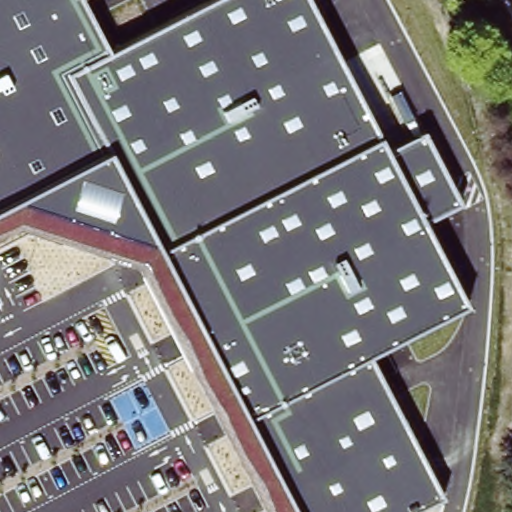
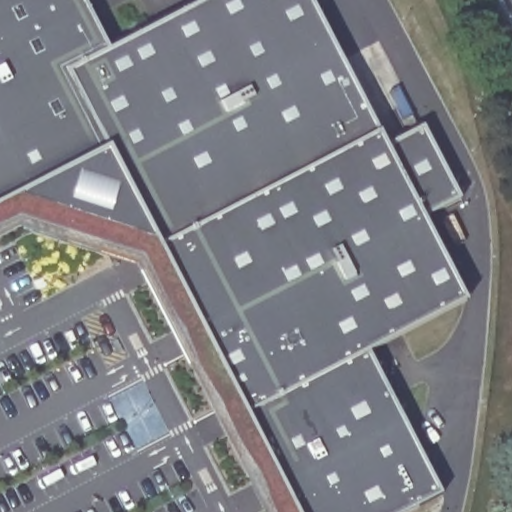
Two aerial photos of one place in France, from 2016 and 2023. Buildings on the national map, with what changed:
unchanged [(138,265),(20,227),(0,238),(0,0),(84,0),(110,50),(205,0),(312,0),(387,145),(424,125),(462,200),(426,217),(467,301),(369,353),(444,493),(408,512),(266,512),(138,265)]

